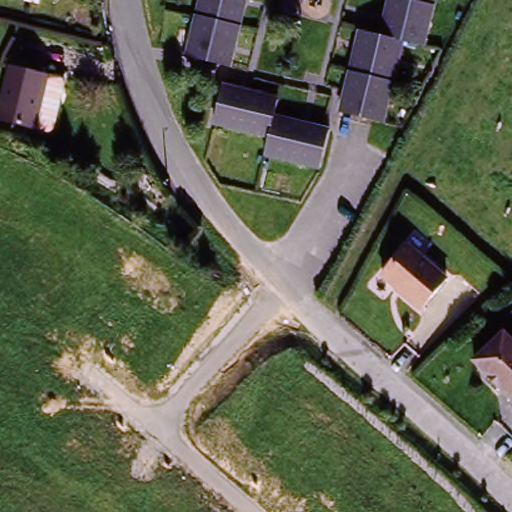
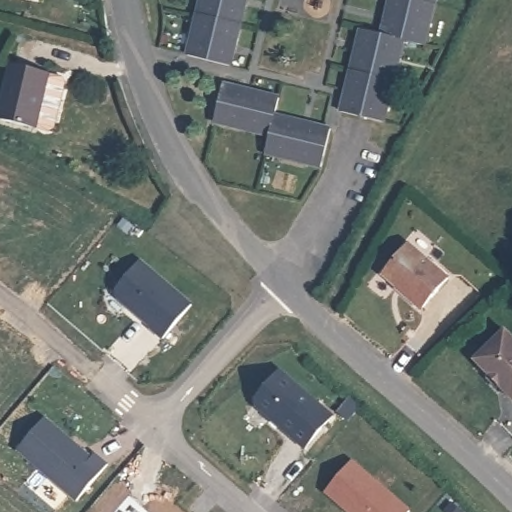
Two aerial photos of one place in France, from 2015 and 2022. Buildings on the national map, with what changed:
unchanged [(230,62),(190,52),(203,0),(246,0),(230,62)]
unchanged [(364,30),(381,36),(391,0),(437,0),(424,47),(407,44),(385,120),(341,109),(364,30)]
unchanged [(7,67),(63,81),(50,135),(0,123),(0,97),(7,67)]
unchanged [(230,85),(285,99),(280,115),(337,131),(325,169),(271,154),(275,141),(220,127),(230,85)]
unchanged [(403,244),(441,278),(415,307),(377,273),(403,244)]
new [(138,259),(190,302),(162,336),(150,325),(150,324),(115,295),(115,286),(138,259)]
unchanged [(500,332),(512,345),(512,403),(470,362),(500,332)]
new [(257,396),(282,368),(333,413),(304,445),(257,403),(257,396)]
new [(43,414),(90,455),(93,451),(106,463),(73,499),(15,446),(43,414)]
new [(407,511),(407,512),(348,512),(323,490),(349,460),(407,511)]

